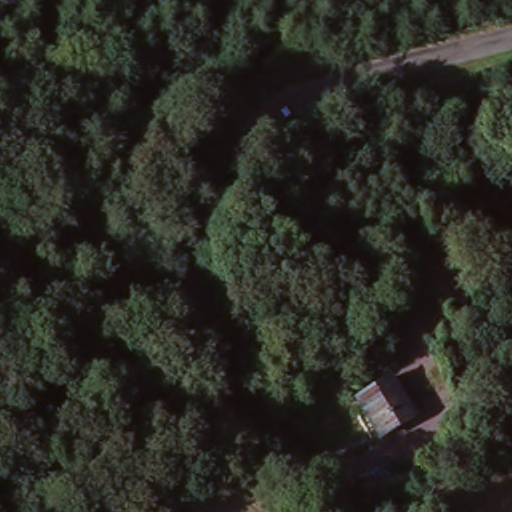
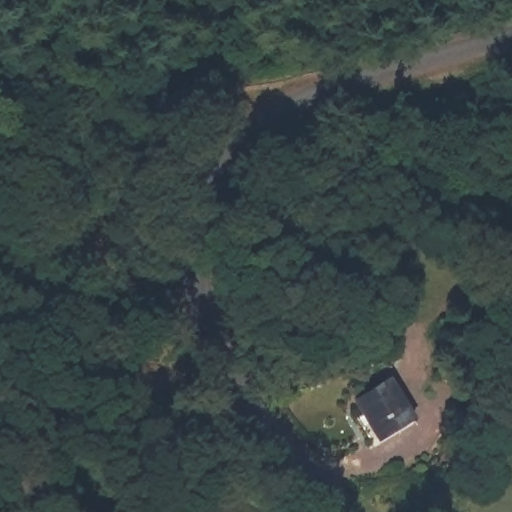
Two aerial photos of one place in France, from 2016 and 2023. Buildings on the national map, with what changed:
unchanged [(382,387),(408,426),(381,447),(354,408),(382,387)]

